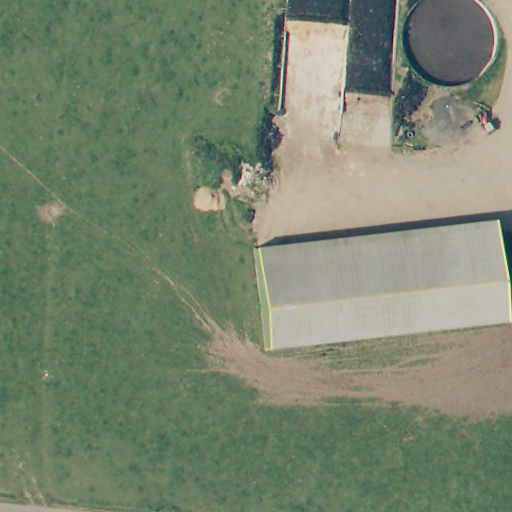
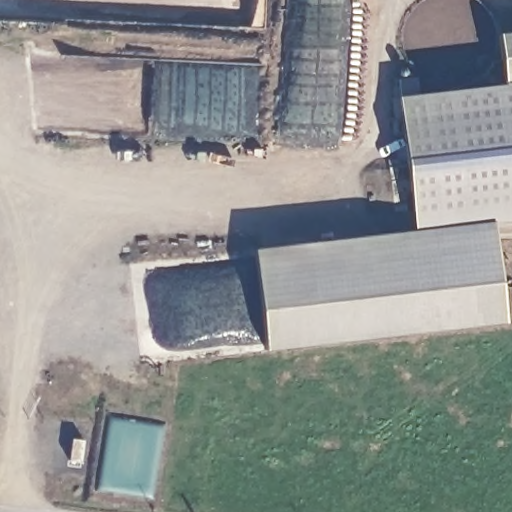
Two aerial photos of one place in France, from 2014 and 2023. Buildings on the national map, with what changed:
new [(505,82),(498,34),(512,33),(512,219),(494,220),(415,230),(397,97),(505,82)]
unchanged [(506,322),(266,350),(252,249),(494,220),(506,322)]

